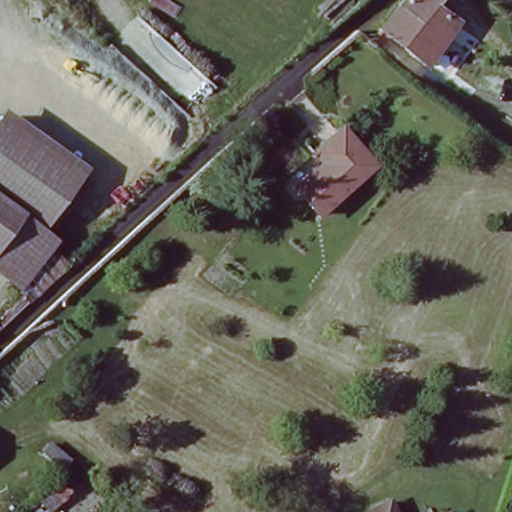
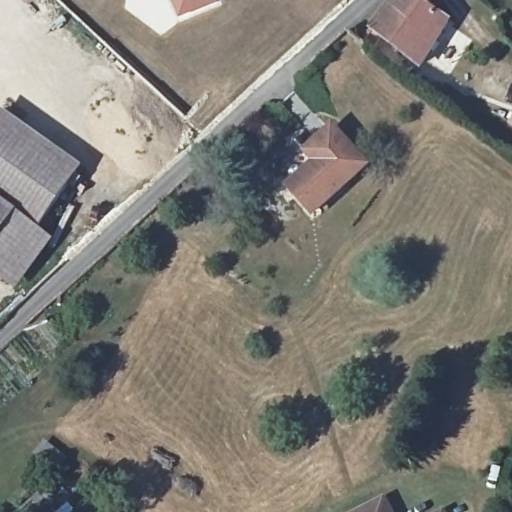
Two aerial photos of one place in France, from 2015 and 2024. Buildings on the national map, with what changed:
new [(220,4),(179,21),(170,0),(218,0),(220,4)]
unchanged [(402,53),(371,29),(395,0),(427,0),(424,4),(447,24),(432,47),(420,67),(402,53)]
unchanged [(0,197),(0,114),(76,169),(40,226),(13,207),(0,197)]
unchanged [(365,165),(312,214),(288,188),(314,165),(308,158),(307,152),(314,146),(332,129),(365,165)]
unchanged [(13,207),(0,225),(0,197),(13,207)]
unchanged [(40,226),(4,275),(0,272),(0,225),(13,207),(40,226)]
unchanged [(67,460),(58,471),(38,454),(46,444),(67,460)]
unchanged [(65,492),(43,511),(33,500),(53,482),(55,481),(65,492)]
unchanged [(393,512),(368,512),(387,502),(393,512)]

